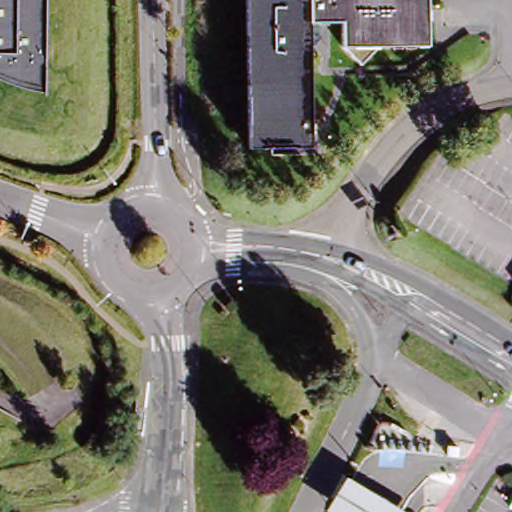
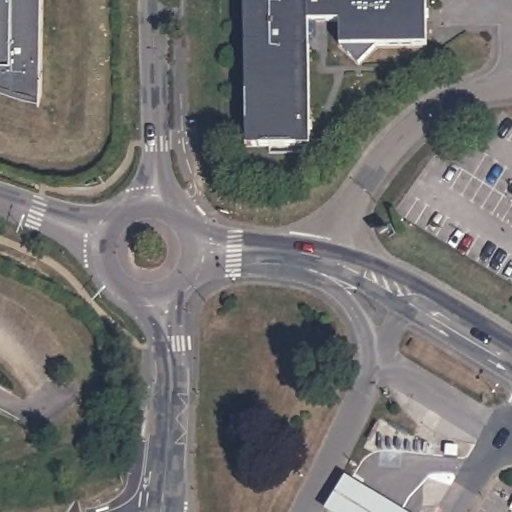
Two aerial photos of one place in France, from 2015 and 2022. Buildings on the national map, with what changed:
unchanged [(41,86),(32,85),(22,84),(13,82),(4,79),(0,77),(0,0),(44,0),(43,57),(43,86),(41,86)]
unchanged [(372,55),(356,72),(334,52),(333,27),(313,29),(313,45),(305,52),(307,146),(243,147),(241,0),(422,0),(423,52),(372,55)]
unchanged [(438,441),(450,441),(450,458),(438,458),(438,441)]
unchanged [(359,497),(383,512),(349,512),(359,497)]

